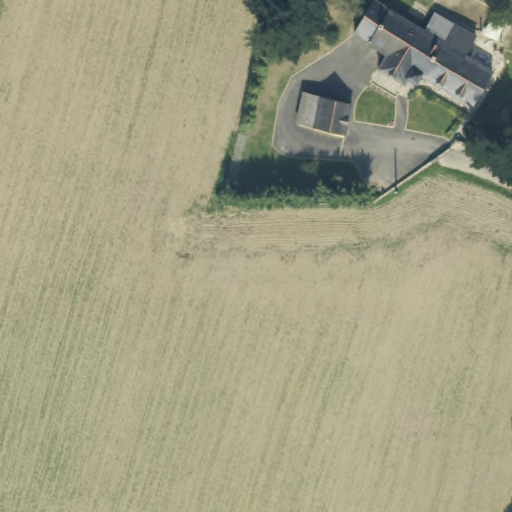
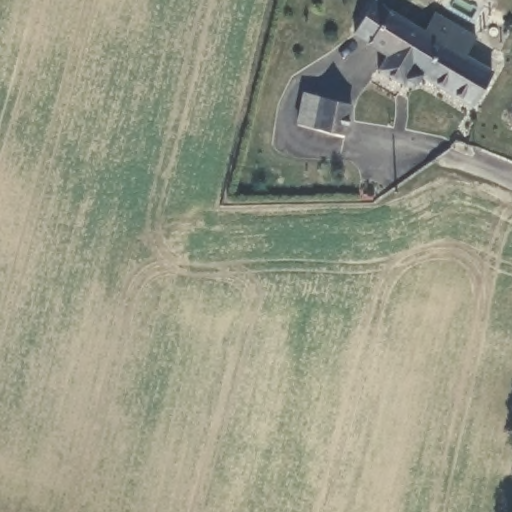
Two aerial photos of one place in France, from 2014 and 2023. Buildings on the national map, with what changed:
unchanged [(418,74),(413,83),(406,79),(402,85),(379,71),(388,56),(367,45),(369,42),(352,32),(370,0),(386,10),(443,44),(454,24),(475,36),(465,55),(490,71),(472,105),(418,74)]
unchanged [(354,109),(347,138),(298,126),(306,96),(354,109)]

